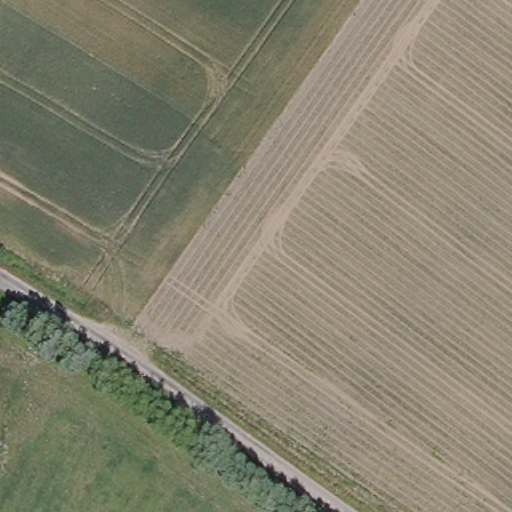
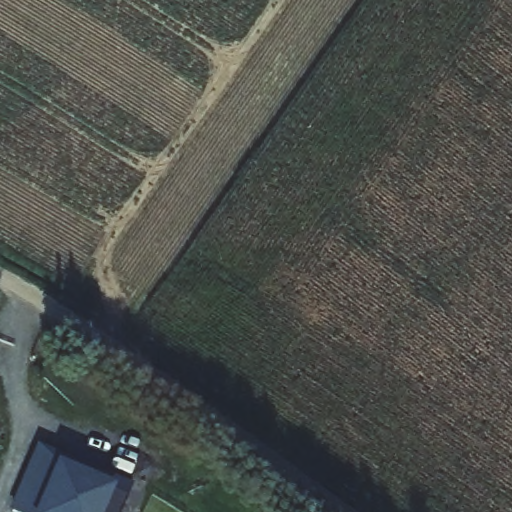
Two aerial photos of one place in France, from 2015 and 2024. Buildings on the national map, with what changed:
new [(142,493),(133,512),(23,512),(50,451),(142,493)]

